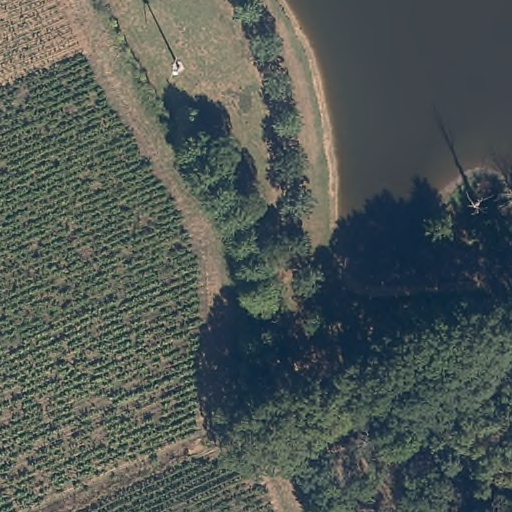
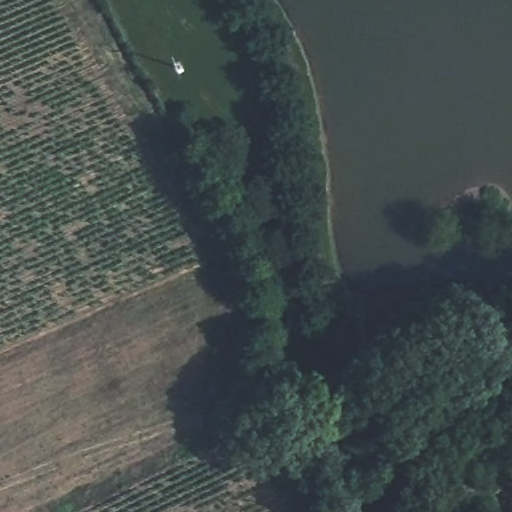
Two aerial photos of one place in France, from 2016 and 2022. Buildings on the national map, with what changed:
[]

